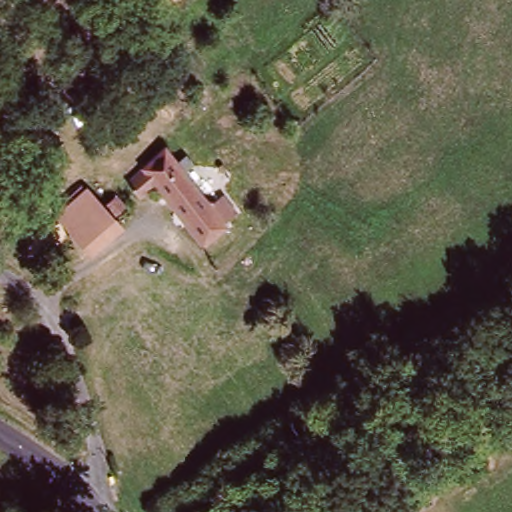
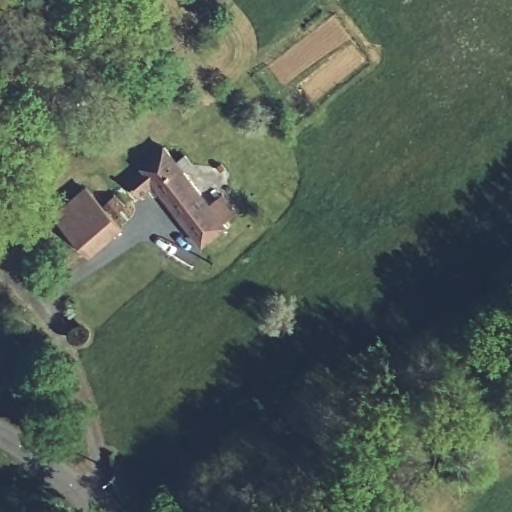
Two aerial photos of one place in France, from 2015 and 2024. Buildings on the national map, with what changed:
unchanged [(188,0),(165,16),(154,0),(188,0)]
unchanged [(148,180),(133,193),(122,180),(160,146),(172,162),(181,155),(188,165),(180,172),(207,204),(225,188),(237,201),(217,216),(222,220),(198,239),(148,180)]
unchanged [(84,188),(97,203),(65,231),(53,217),(84,188)]
unchanged [(113,193),(122,204),(113,213),(104,201),(113,193)]
unchanged [(117,227),(87,253),(70,234),(100,207),(117,227)]

